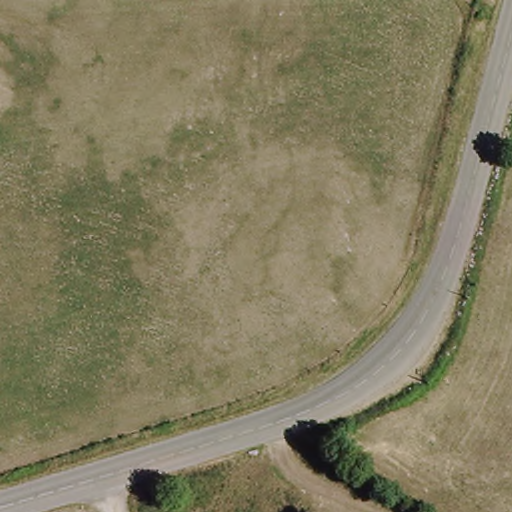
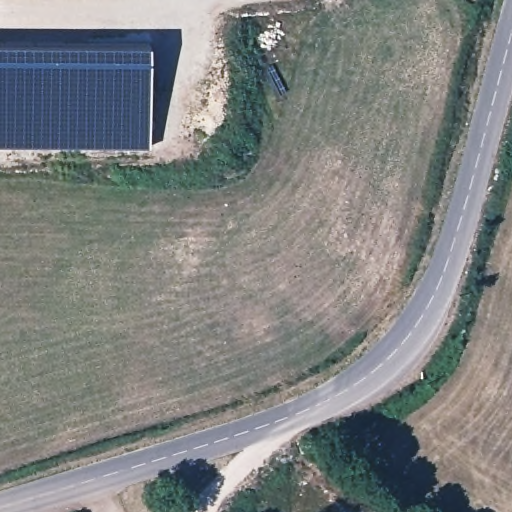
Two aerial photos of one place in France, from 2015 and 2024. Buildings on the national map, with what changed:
new [(150,144),(0,145),(0,37),(149,37),(150,144)]

